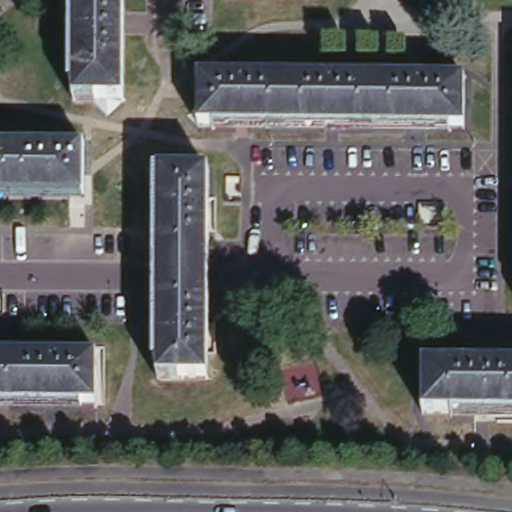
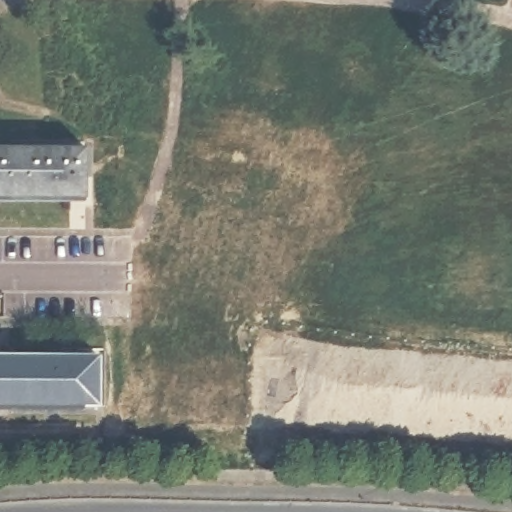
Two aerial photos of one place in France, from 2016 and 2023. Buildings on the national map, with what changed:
demolished [(74,102),(74,0),(124,0),(124,54),(124,99),(124,101),(86,102),(74,102)]
demolished [(199,128),(200,102),(200,78),(466,80),(465,130),(448,130),(356,129),(237,129),(203,129),(199,129),(199,128)]
unchanged [(85,147),(85,148),(85,165),(85,175),(85,198),(0,198),(0,146),(85,147)]
demolished [(204,174),(208,174),(208,298),(207,380),(158,380),(158,313),(158,241),(158,176),(158,174),(204,174)]
unchanged [(10,356),(93,356),(93,407),(0,407),(0,356),(10,356)]
demolished [(512,419),(435,418),(424,418),(424,368),(512,368),(512,419)]

